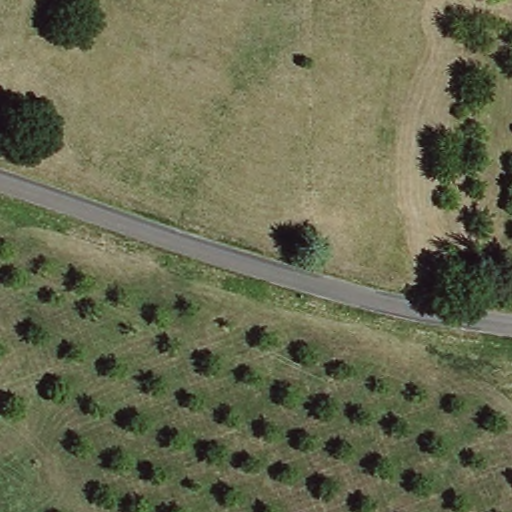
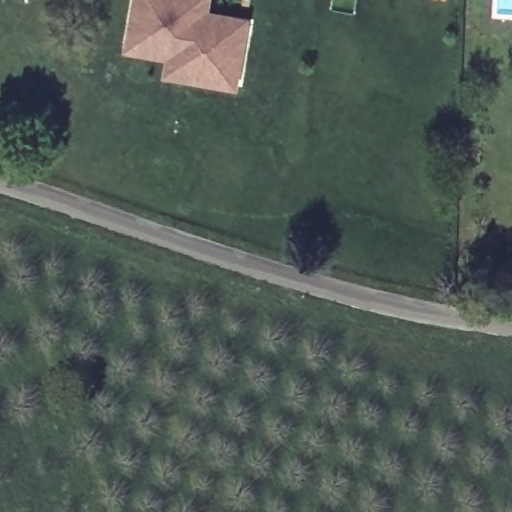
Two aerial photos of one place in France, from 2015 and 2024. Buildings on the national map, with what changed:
new [(186,0),(190,1),(187,19),(243,28),(236,74),(177,64),(181,40),(126,31),(131,0),(186,0)]
new [(245,16),(243,28),(187,19),(190,1),(186,0),(205,0),(204,10),(245,16)]
new [(126,31),(181,40),(177,64),(236,74),(234,84),(164,73),(167,56),(124,49),(126,31)]

